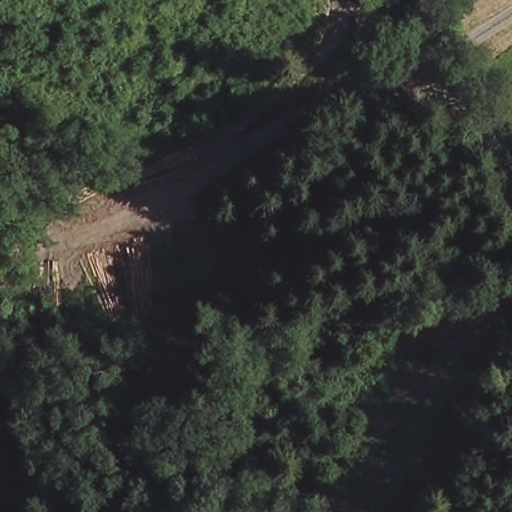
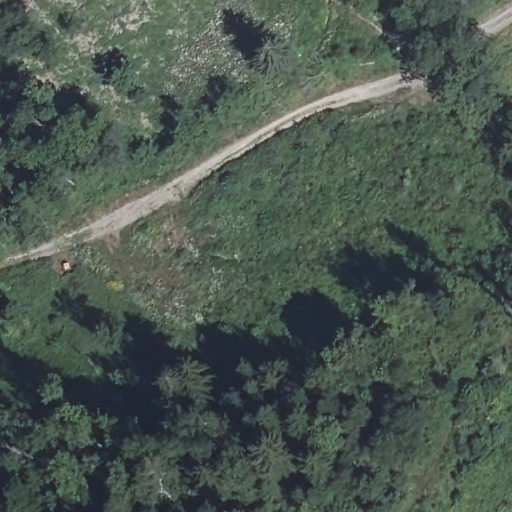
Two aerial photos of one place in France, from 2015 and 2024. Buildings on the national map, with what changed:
unchanged [(403,16),(395,0),(431,0),(431,1),(403,16)]

